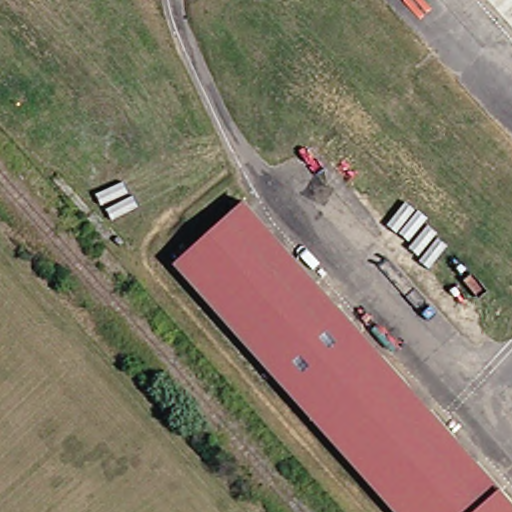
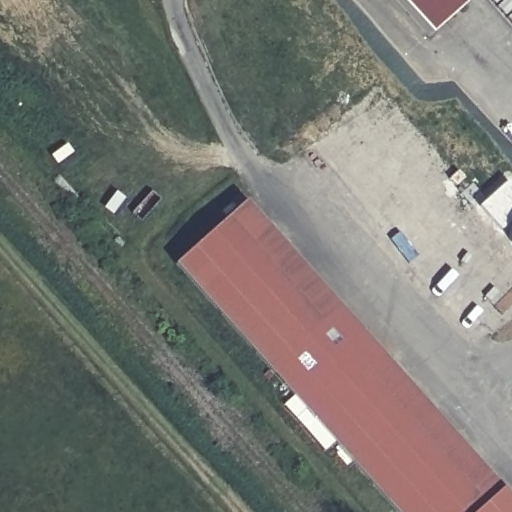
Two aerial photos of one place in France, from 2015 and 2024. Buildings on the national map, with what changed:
new [(429,35),(398,0),(458,0),(463,5),(429,35)]
unchanged [(241,201),(358,332),(288,394),(171,264),(241,201)]
unchanged [(358,332),(512,504),(512,512),(393,512),(288,394),(358,332)]

